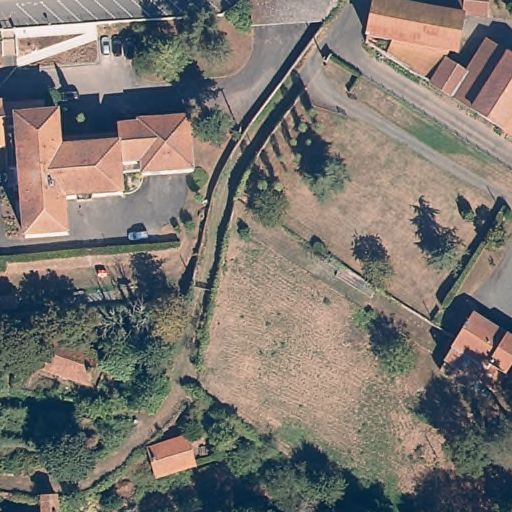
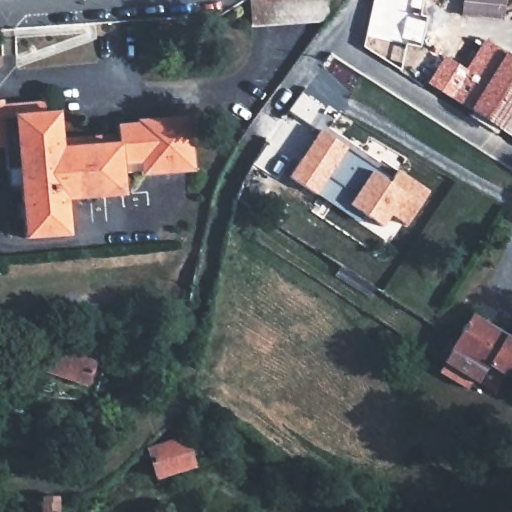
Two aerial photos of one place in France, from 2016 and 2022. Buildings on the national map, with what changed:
unchanged [(247,0),(343,0),(329,20),(248,27),(247,0)]
unchanged [(442,53),(445,55),(449,48),(366,31),(371,0),(404,0),(462,10),(460,16),(455,41),(465,36),(477,43),(481,38),(512,59),(512,136),(424,79),(442,53)]
unchanged [(487,18),(460,16),(462,10),(404,0),(487,0),(487,18)]
unchanged [(4,102),(45,99),(46,110),(60,110),(61,144),(114,140),(119,121),(136,121),(136,117),(188,115),(193,173),(123,178),(123,197),(67,200),(69,235),(18,238),(15,168),(5,167),(4,145),(0,145),(0,99),(4,99),(4,102)]
new [(320,132),(375,169),(372,174),(389,185),(398,172),(430,193),(406,228),(390,216),(381,229),(348,207),(355,198),(327,179),(315,196),(289,179),(320,132)]
unchanged [(111,311),(112,327),(81,329),(80,314),(111,311)]
unchanged [(468,373),(460,385),(437,371),(454,343),(451,340),(454,334),(469,311),(512,337),(512,375),(511,377),(499,370),(488,388),(473,379),(474,376),(468,373)]
unchanged [(87,386),(41,370),(53,341),(97,356),(87,386)]
unchanged [(8,448),(0,444),(0,411),(82,420),(79,448),(44,445),(43,454),(8,448)]
unchanged [(149,446),(187,439),(192,466),(153,473),(149,446)]
unchanged [(35,503),(35,499),(56,500),(56,512),(24,512),(25,503),(35,503)]

